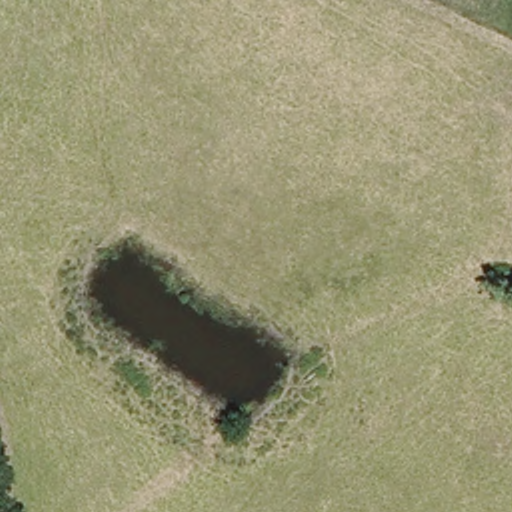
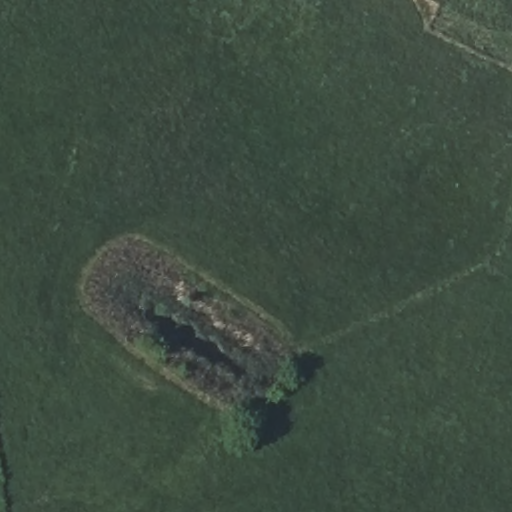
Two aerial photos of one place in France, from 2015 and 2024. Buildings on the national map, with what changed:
[]

